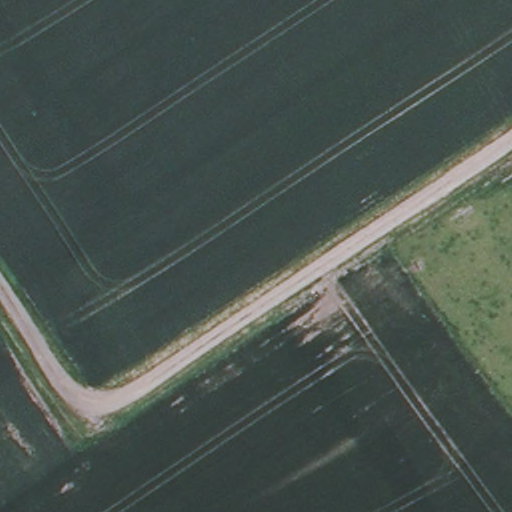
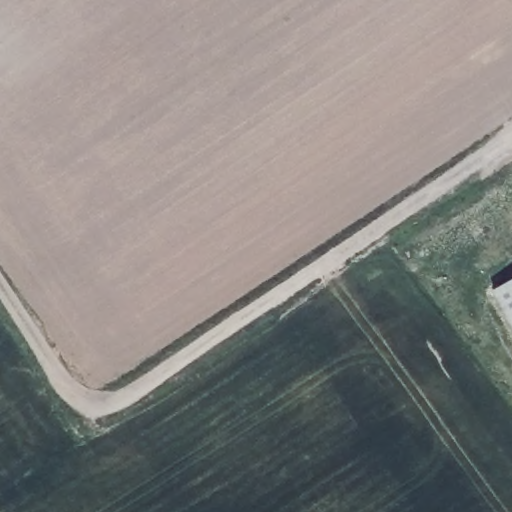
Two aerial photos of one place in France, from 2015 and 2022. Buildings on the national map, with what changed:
new [(490,291),(512,279),(512,330),(490,291)]

